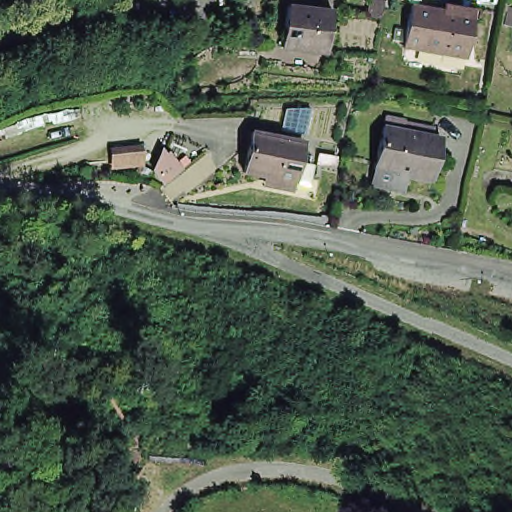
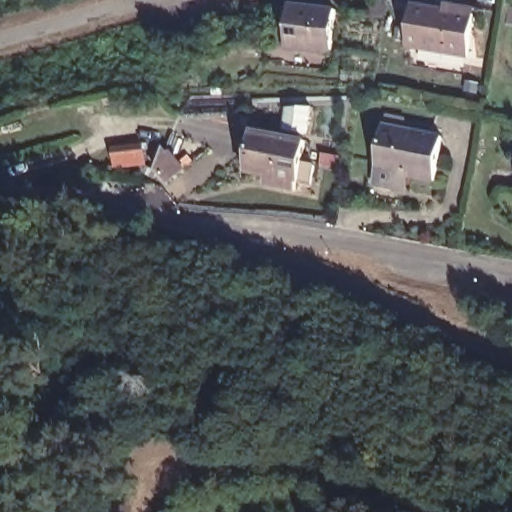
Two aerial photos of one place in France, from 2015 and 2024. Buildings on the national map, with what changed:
unchanged [(286,52),(290,10),(335,15),(330,56),(286,52)]
unchanged [(434,13),(455,17),(455,12),(483,17),(474,65),(412,52),(421,11),(434,13)]
unchanged [(509,30),(512,16),(512,30),(509,30)]
unchanged [(377,187),(379,179),(382,179),(380,174),(387,135),(445,146),(437,189),(412,184),(410,193),(377,187)]
unchanged [(271,185),(247,181),(255,140),(307,150),(303,171),(318,174),(313,194),(298,190),(297,198),(277,195),(269,193),(271,185)]
unchanged [(181,171),(169,181),(160,171),(168,152),(181,171)]

